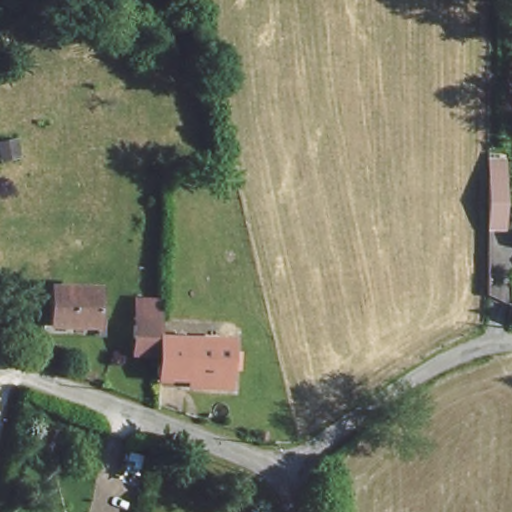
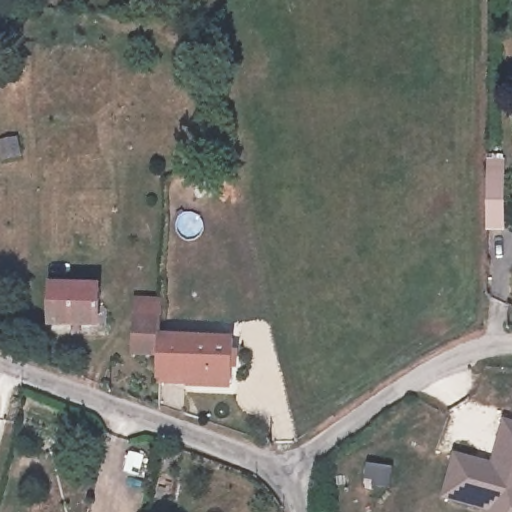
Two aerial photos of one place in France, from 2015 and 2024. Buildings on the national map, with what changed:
unchanged [(492,180),(511,181),(510,234),(490,234),(492,180)]
unchanged [(95,320),(54,317),(55,280),(98,284),(95,320)]
unchanged [(133,360),(134,325),(136,295),(164,297),(161,327),(160,350),(231,353),(230,389),(158,385),(159,363),(133,360)]
new [(454,454),(491,464),(504,420),(512,422),(512,512),(489,512),(442,498),(454,454)]

